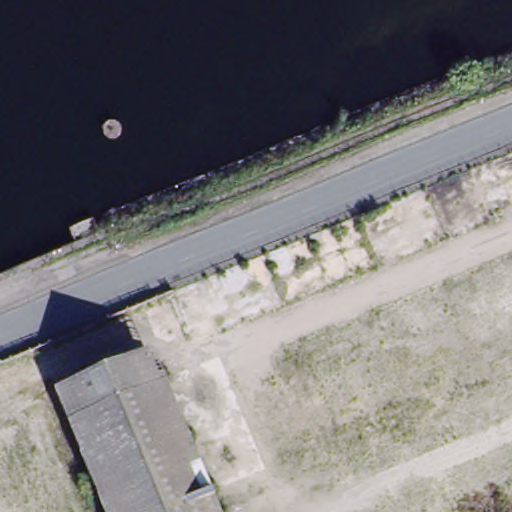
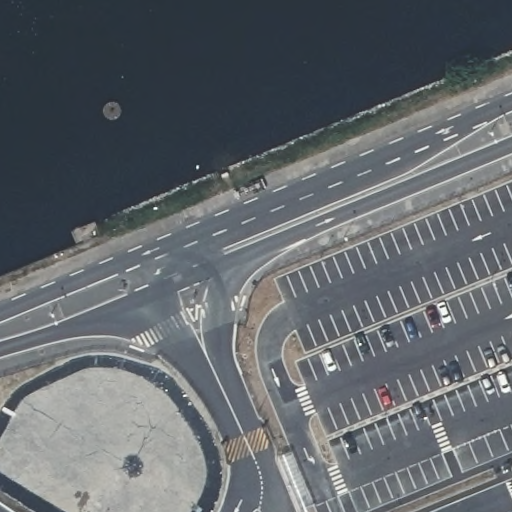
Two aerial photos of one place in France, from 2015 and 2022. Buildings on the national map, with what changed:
demolished [(147,351),(214,512),(104,512),(54,390),(147,351)]

